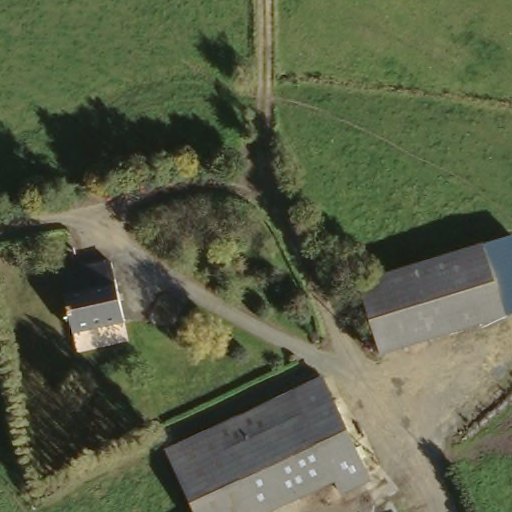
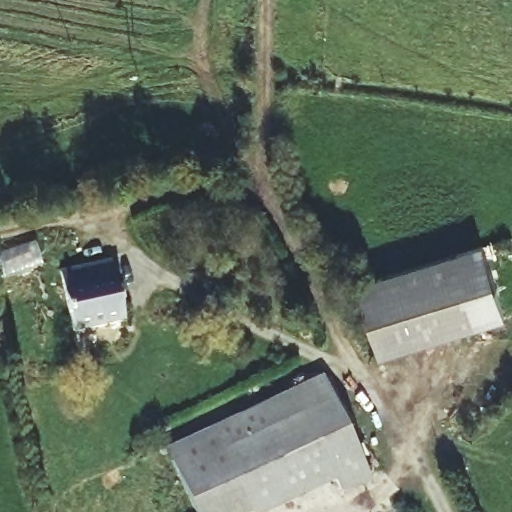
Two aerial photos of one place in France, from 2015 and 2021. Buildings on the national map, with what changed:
unchanged [(510,280),(512,287),(512,314),(476,325),(377,356),(371,358),(369,352),(350,289),(499,243),(510,280)]
unchanged [(114,262),(124,323),(70,332),(60,272),(114,262)]
unchanged [(320,382),(367,484),(340,497),(332,479),(260,512),(194,512),(167,454),(280,402),(320,382)]

